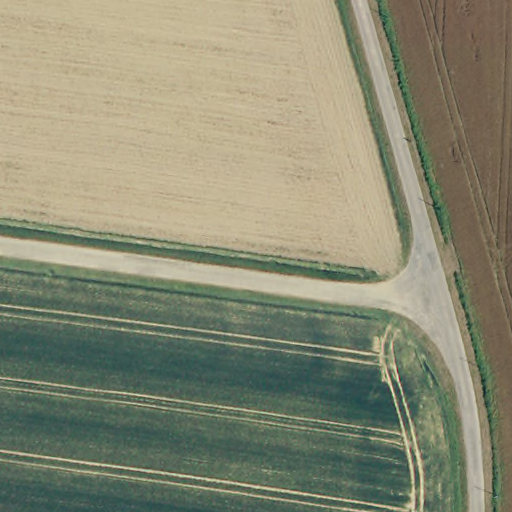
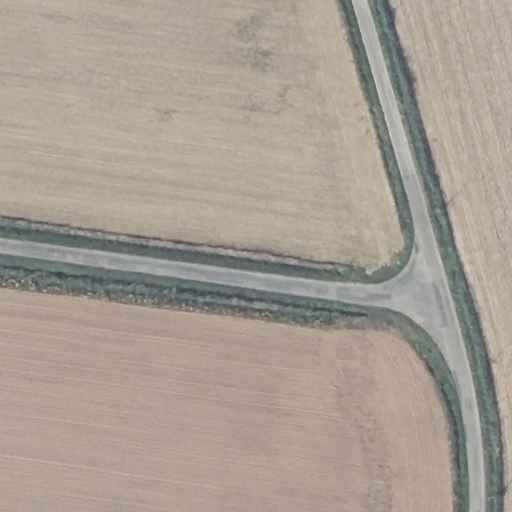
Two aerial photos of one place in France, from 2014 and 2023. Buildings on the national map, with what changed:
[]

